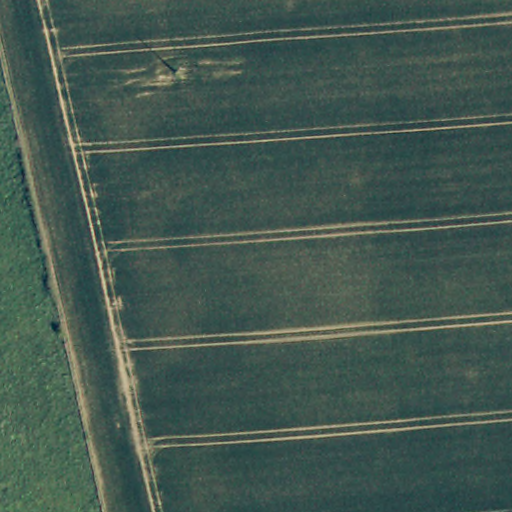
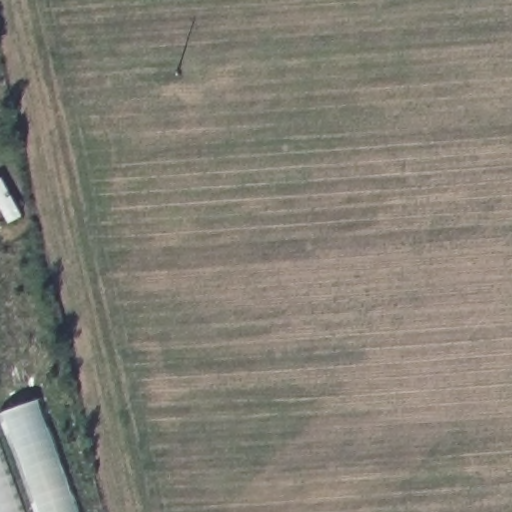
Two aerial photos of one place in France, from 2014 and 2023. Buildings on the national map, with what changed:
new [(37,512),(0,414),(0,412),(37,398),(79,512),(37,512)]
new [(22,512),(0,512),(0,450),(22,512)]

